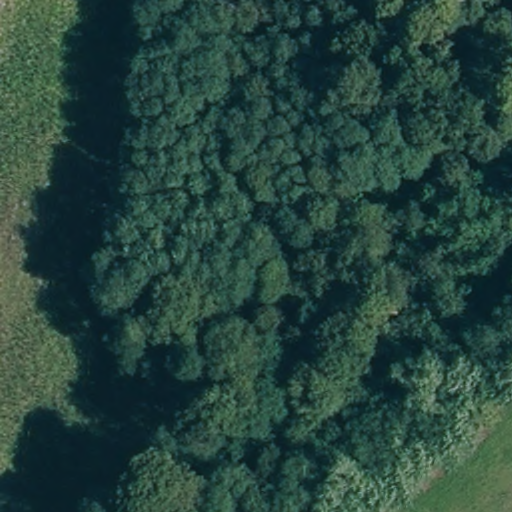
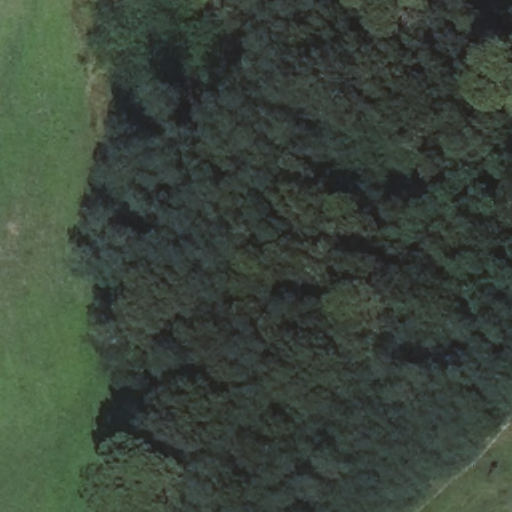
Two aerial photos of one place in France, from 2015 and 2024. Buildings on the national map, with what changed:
[]

